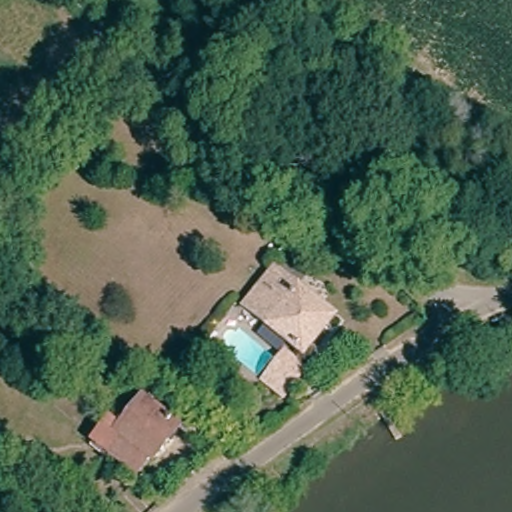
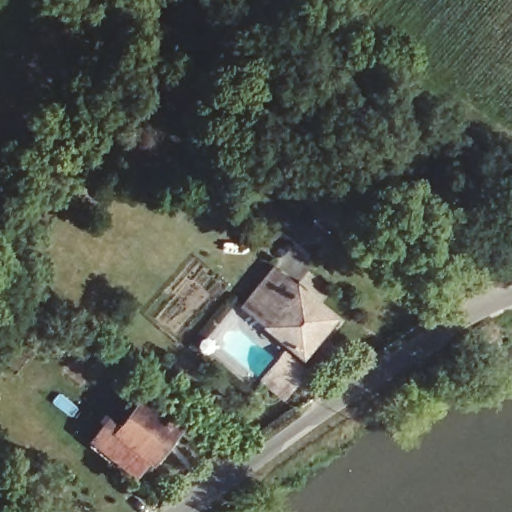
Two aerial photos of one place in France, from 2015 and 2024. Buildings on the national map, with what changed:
unchanged [(333,317),(303,354),(244,306),(275,269),(333,317)]
unchanged [(284,355),(304,370),(292,385),(287,380),(278,392),(264,381),(284,355)]
unchanged [(138,404),(163,424),(169,416),(195,436),(187,446),(173,435),(148,467),(141,462),(128,478),(108,462),(121,446),(111,438),(138,404)]

